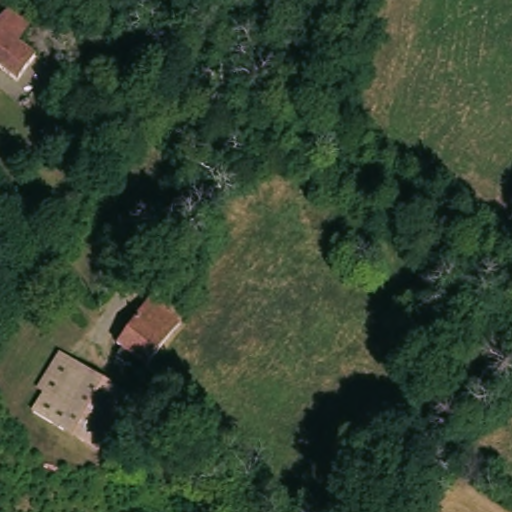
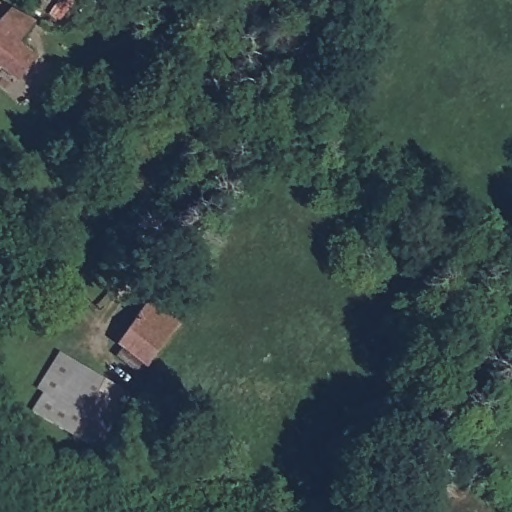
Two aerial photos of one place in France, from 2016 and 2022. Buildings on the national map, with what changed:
unchanged [(1,27),(17,7),(36,21),(20,40),(0,68),(0,26),(1,27)]
unchanged [(112,360),(119,352),(112,348),(149,293),(185,316),(147,373),(138,366),(132,375),(112,360)]
unchanged [(35,379),(56,349),(88,372),(67,402),(42,385),(35,379)]
unchanged [(87,445),(75,436),(29,405),(42,385),(67,402),(88,372),(109,386),(121,395),(87,445)]

